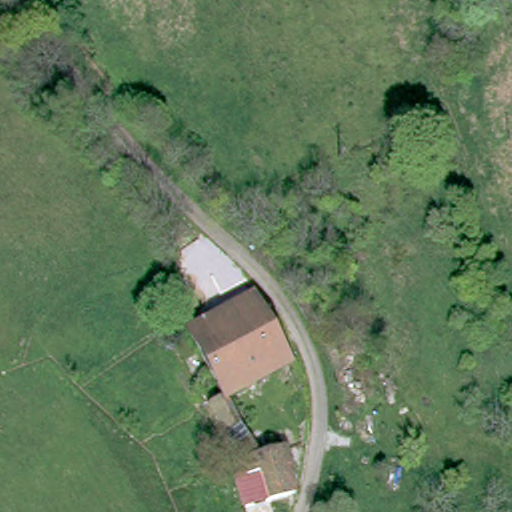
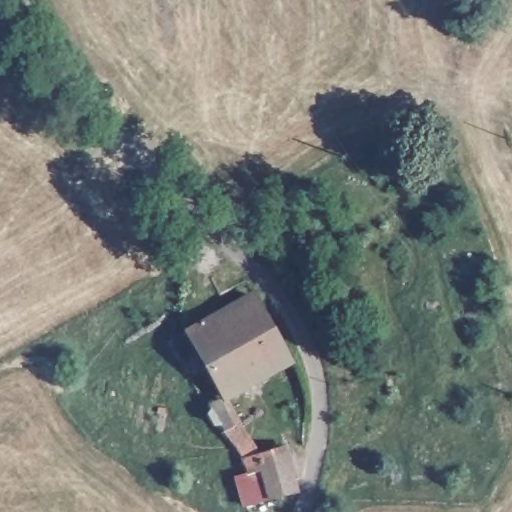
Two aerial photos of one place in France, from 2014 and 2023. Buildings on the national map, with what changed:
unchanged [(285,359),(220,397),(233,421),(220,429),(204,401),(217,394),(184,332),(248,296),(285,359)]
unchanged [(291,490),(265,496),(259,467),(242,471),(239,453),(280,444),(291,490)]

